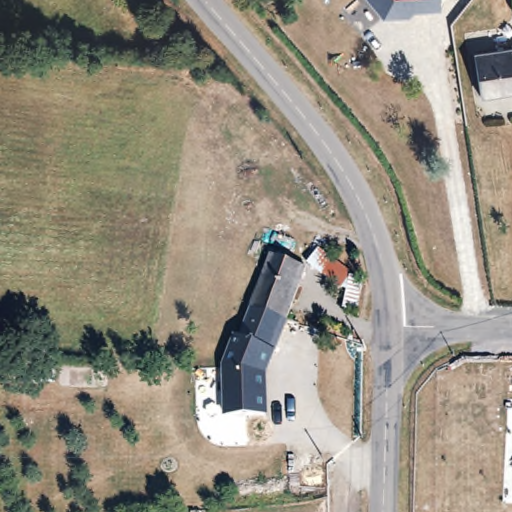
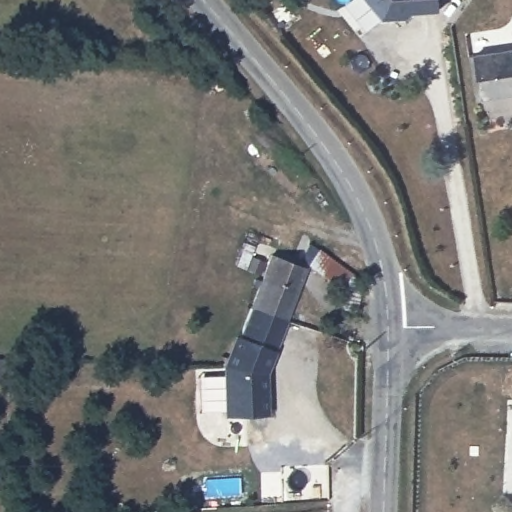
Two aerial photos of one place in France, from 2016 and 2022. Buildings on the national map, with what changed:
unchanged [(411,12),(408,18),(381,20),(365,0),(438,0),(439,10),(411,12)]
unchanged [(512,50),(512,95),(479,100),(472,56),(512,50)]
unchanged [(304,268),(268,374),(269,416),(222,416),(220,367),(235,336),(240,338),(269,252),(304,268)]
unchanged [(361,279),(361,286),(357,312),(341,308),(343,292),(304,268),(315,252),(361,279)]

